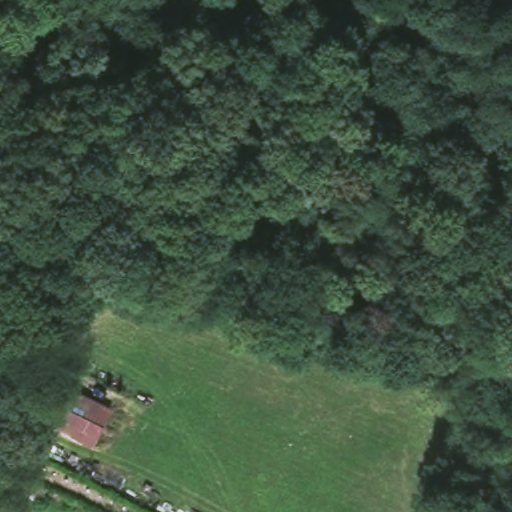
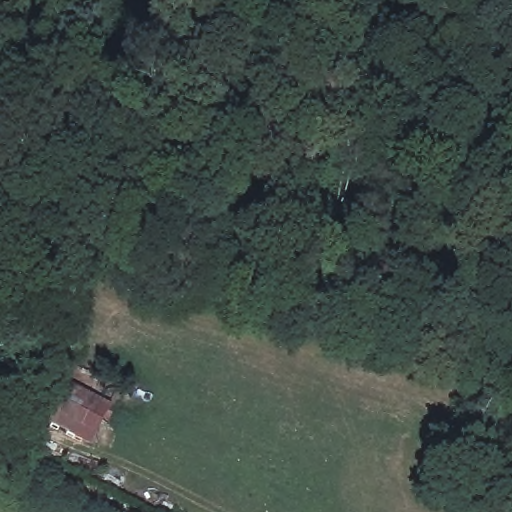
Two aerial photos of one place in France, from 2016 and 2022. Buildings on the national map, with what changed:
unchanged [(92,445),(37,418),(57,374),(112,400),(92,445)]

